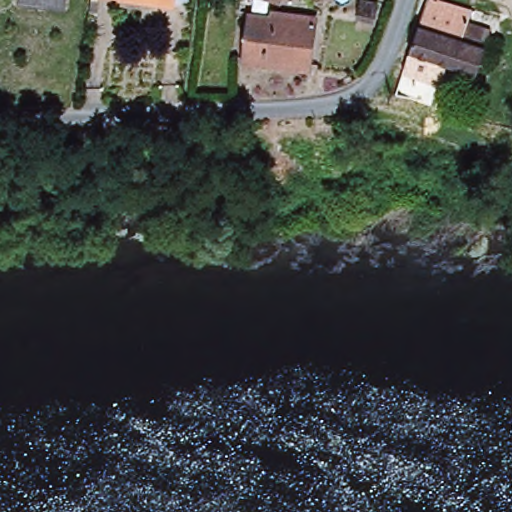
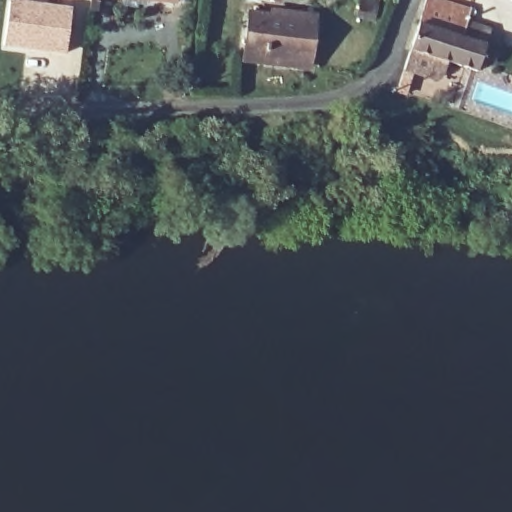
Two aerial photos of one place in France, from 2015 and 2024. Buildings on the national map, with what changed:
new [(11,0),(72,7),(64,54),(3,46),(11,0)]
demolished [(14,0),(64,0),(63,8),(14,0)]
unchanged [(137,0),(171,0),(171,5),(137,0)]
unchanged [(470,20),(493,27),(487,47),(481,71),(409,47),(424,0),(435,0),(473,11),(470,20)]
unchanged [(243,51),(248,12),(317,21),(314,58),(243,51)]

